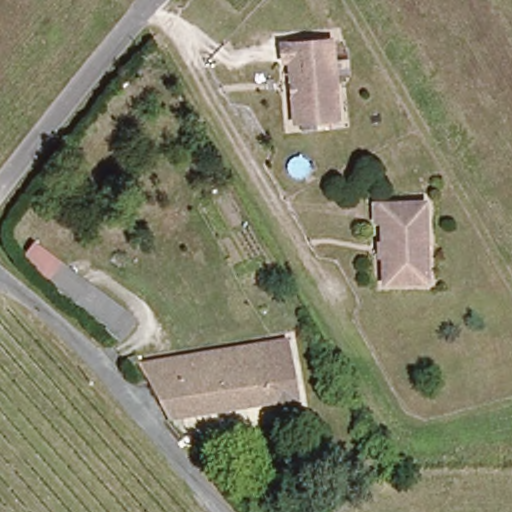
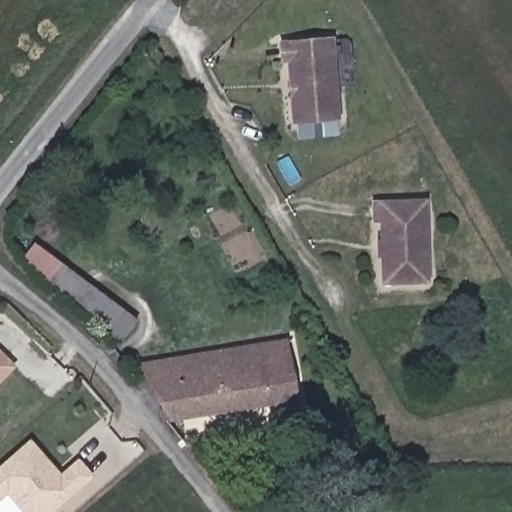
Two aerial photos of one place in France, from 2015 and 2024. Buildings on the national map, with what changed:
unchanged [(336,120),(292,121),(290,66),(281,66),(281,45),(332,44),(336,120)]
unchanged [(430,284),(386,284),(387,228),(378,228),(377,210),(428,212),(430,284)]
unchanged [(135,318),(120,339),(107,328),(108,321),(52,278),(62,261),(135,318)]
unchanged [(277,414),(274,399),(169,414),(141,362),(283,340),(295,395),(298,412),(277,414)]
new [(0,383),(0,351),(15,366),(0,383)]
new [(55,512),(21,512),(7,496),(0,502),(0,467),(32,439),(62,474),(79,459),(95,478),(55,512)]

